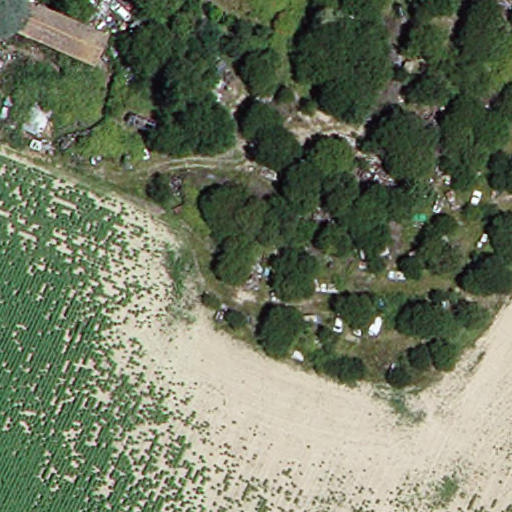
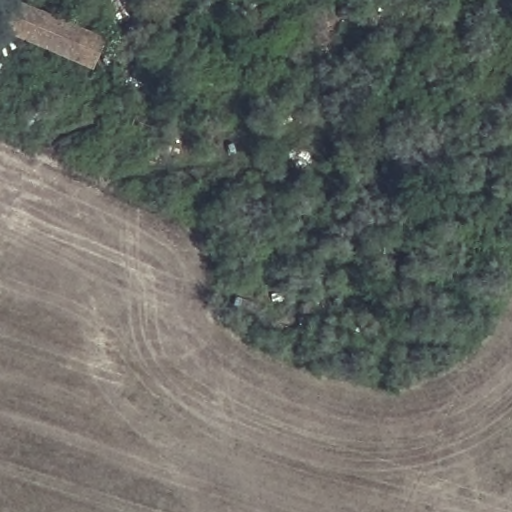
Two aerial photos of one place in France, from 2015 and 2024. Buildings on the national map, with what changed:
unchanged [(19,3),(108,41),(97,67),(7,30),(19,3)]

